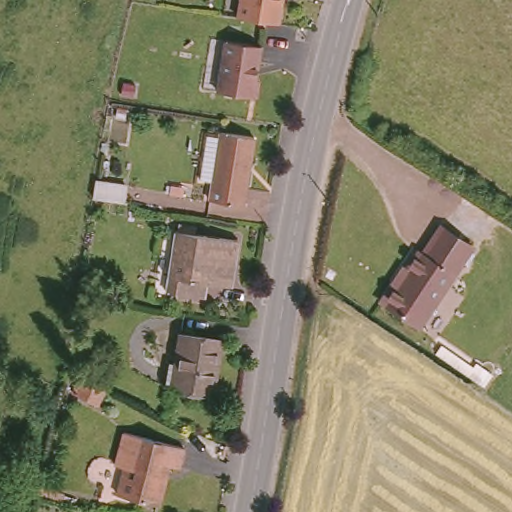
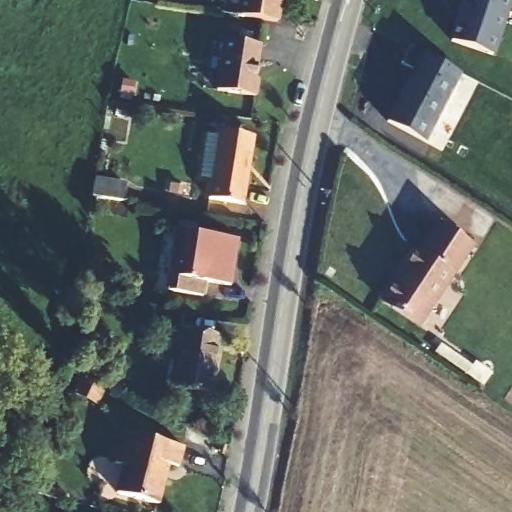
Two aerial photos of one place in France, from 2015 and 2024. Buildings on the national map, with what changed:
unchanged [(280,25),(239,18),(243,0),(285,0),(280,25)]
new [(450,37),(460,7),(457,6),(459,0),(511,0),(492,52),(450,37)]
unchanged [(262,53),(255,86),(260,86),(255,103),(217,97),(227,46),(262,53)]
new [(388,122),(414,71),(400,64),(408,47),(462,72),(426,143),(388,122)]
unchanged [(257,131),(245,201),(207,196),(209,183),(193,181),(200,146),(217,147),(220,126),(257,131)]
unchanged [(128,184),(126,204),(94,199),(98,176),(128,184)]
unchanged [(377,301),(413,247),(421,251),(440,221),(474,245),(420,328),(377,301)]
unchanged [(240,237),(232,282),(205,279),(203,293),(165,288),(175,228),(240,237)]
unchanged [(220,334),(212,383),(168,377),(176,327),(220,334)]
new [(452,355),(483,377),(487,371),(502,383),(494,395),(448,361),(452,355)]
unchanged [(162,499),(125,493),(120,492),(125,468),(112,466),(120,429),(183,441),(179,466),(168,464),(163,494),(162,499)]

